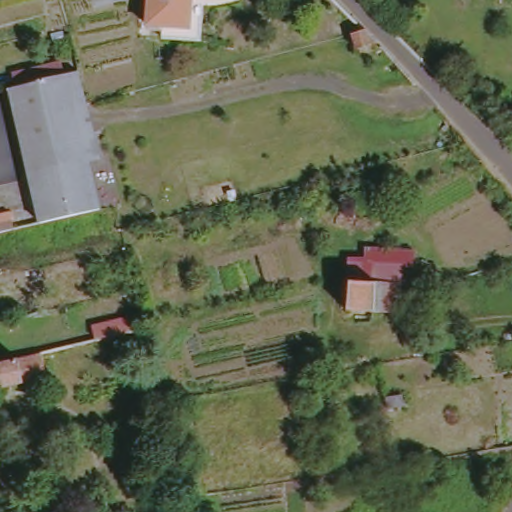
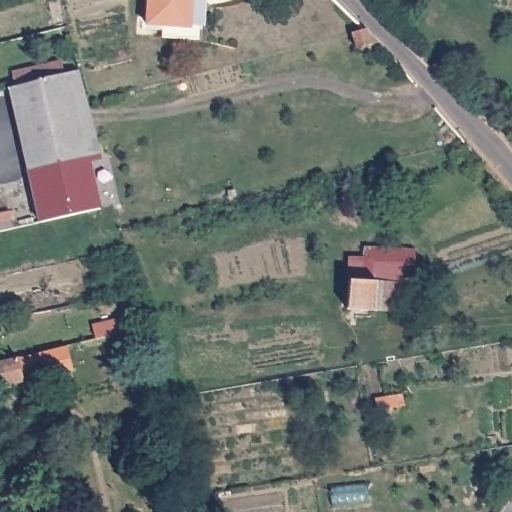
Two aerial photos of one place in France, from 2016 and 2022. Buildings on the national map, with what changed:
unchanged [(201,32),(201,37),(183,36),(156,35),(158,0),(214,0),(213,6),(201,6),(201,32)]
unchanged [(19,84),(78,70),(84,97),(25,111),(19,84)]
unchanged [(25,111),(84,97),(98,151),(38,166),(25,111)]
unchanged [(50,216),(38,166),(98,151),(110,202),(50,216)]
unchanged [(13,230),(0,234),(0,218),(11,213),(13,230)]
unchanged [(402,287),(401,317),(376,313),(348,312),(350,282),(349,258),(366,259),(366,248),(417,252),(416,268),(403,269),(402,287)]
unchanged [(17,295),(0,299),(0,279),(12,277),(17,295)]
unchanged [(0,365),(24,360),(49,357),(50,373),(29,378),(30,386),(6,392),(0,365)]

